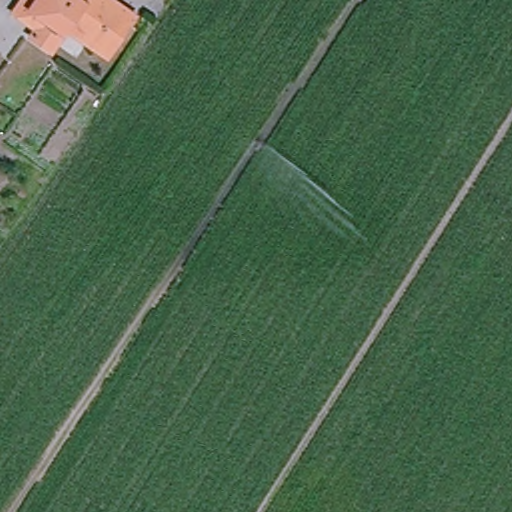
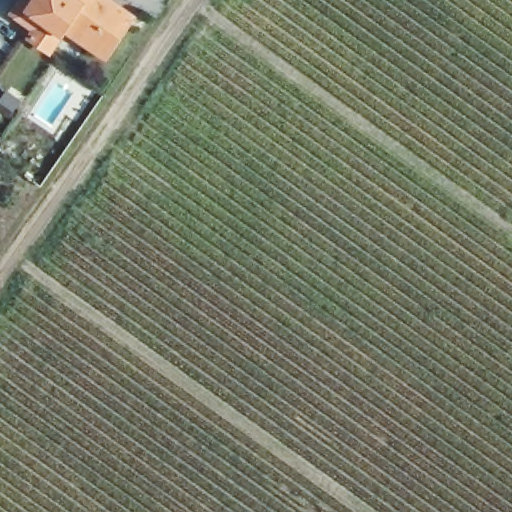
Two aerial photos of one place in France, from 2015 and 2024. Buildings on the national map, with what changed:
unchanged [(132,28),(105,65),(33,11),(40,0),(93,0),(132,28)]

